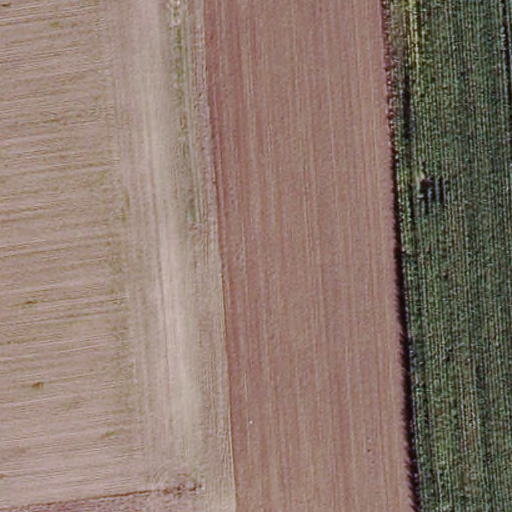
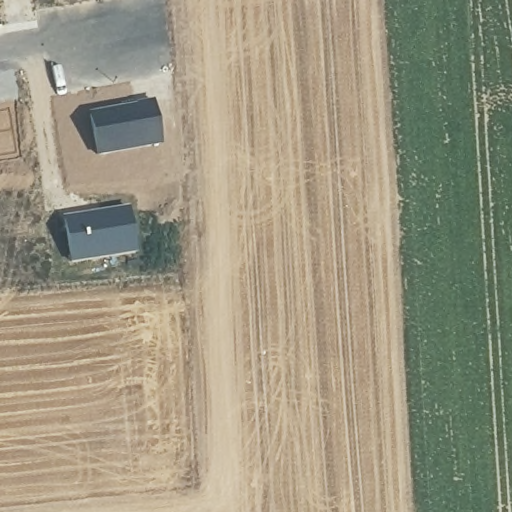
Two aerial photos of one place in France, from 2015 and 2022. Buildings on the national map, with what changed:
new [(138,106),(138,104),(154,101),(162,143),(97,155),(90,114),(138,106)]
new [(129,208),(136,251),(72,261),(64,218),(129,208)]

